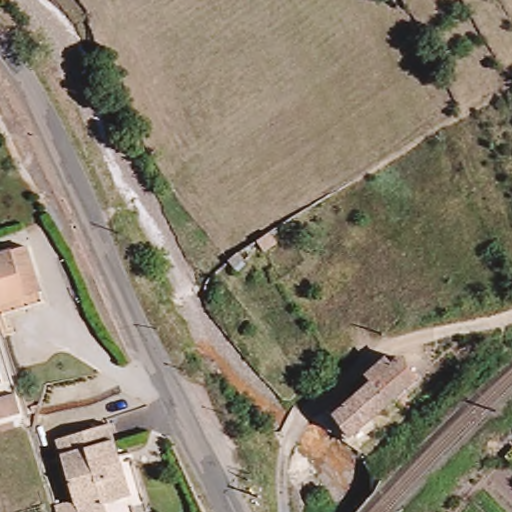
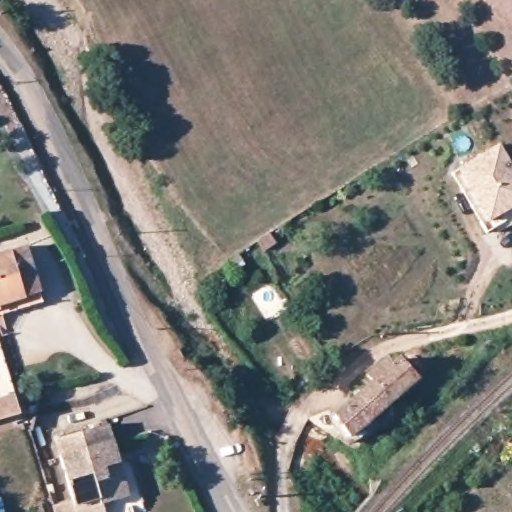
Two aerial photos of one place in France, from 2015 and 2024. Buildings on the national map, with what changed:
new [(512,226),(508,221),(488,232),(451,173),(457,168),(500,144),(512,165),(512,226)]
unchanged [(26,306),(25,299),(6,303),(8,310),(11,325),(3,328),(0,315),(0,250),(30,242),(38,275),(45,301),(26,306)]
unchanged [(370,374),(362,368),(380,352),(388,361),(399,352),(416,371),(388,393),(367,410),(373,416),(350,434),(330,409),(350,391),(370,374)]
unchanged [(0,421),(0,401),(21,397),(30,417),(0,421)]
unchanged [(56,434),(108,422),(118,463),(126,497),(97,503),(100,512),(75,512),(72,504),(56,434)]

